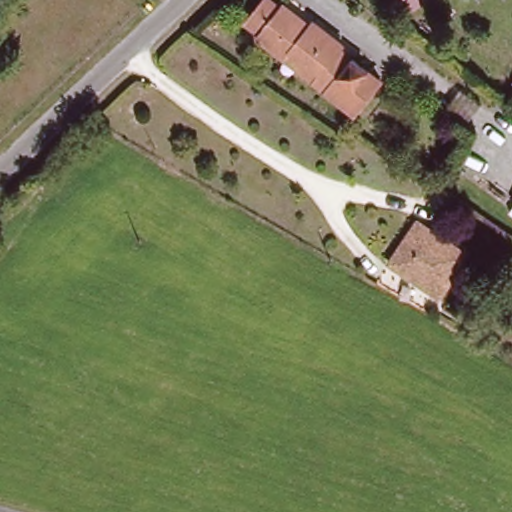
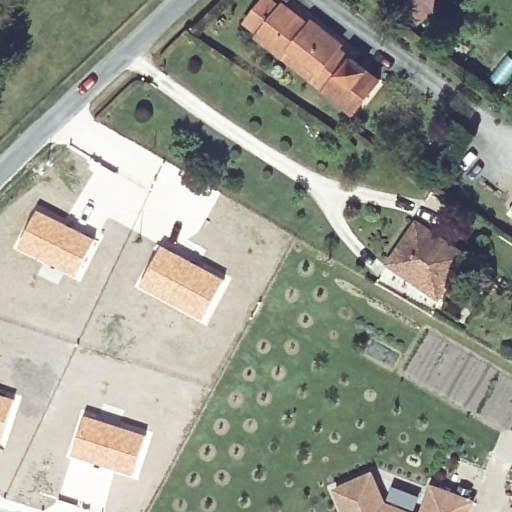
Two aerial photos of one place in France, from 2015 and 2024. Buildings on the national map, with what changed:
unchanged [(253,32),(240,21),(257,0),(272,0),(276,3),(279,0),(281,0),(304,20),(309,17),(344,42),(342,46),(380,77),(352,116),(248,38),(253,32)]
new [(37,208),(96,238),(75,277),(19,245),(37,208)]
unchanged [(413,219),(466,252),(436,301),(382,268),(413,219)]
new [(162,243),(226,277),(202,318),(139,285),(162,243)]
new [(15,399),(0,443),(0,394),(15,399)]
new [(84,414),(146,433),(133,474),(72,454),(84,414)]
new [(374,471),(388,503),(413,512),(343,512),(333,489),(374,471)]
new [(432,482),(477,498),(473,512),(421,512),(432,482)]

